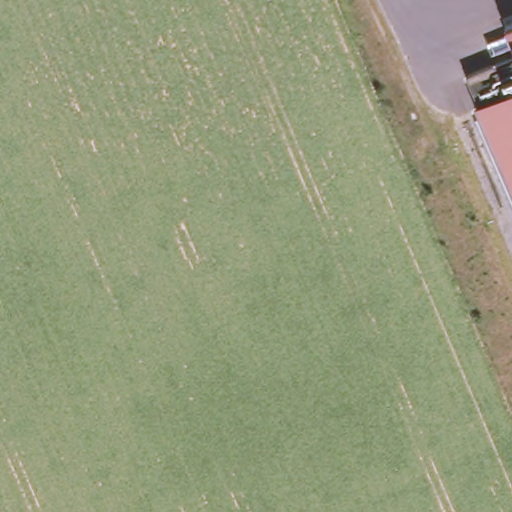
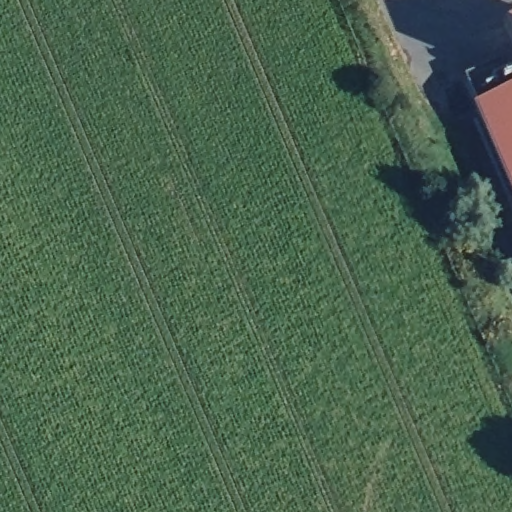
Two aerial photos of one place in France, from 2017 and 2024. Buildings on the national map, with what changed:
unchanged [(510,23),(512,22),(512,28),(510,23)]
unchanged [(481,106),(485,104),(470,73),(512,55),(512,124),(493,132),(481,106)]
unchanged [(512,124),(512,176),(493,132),(512,124)]

